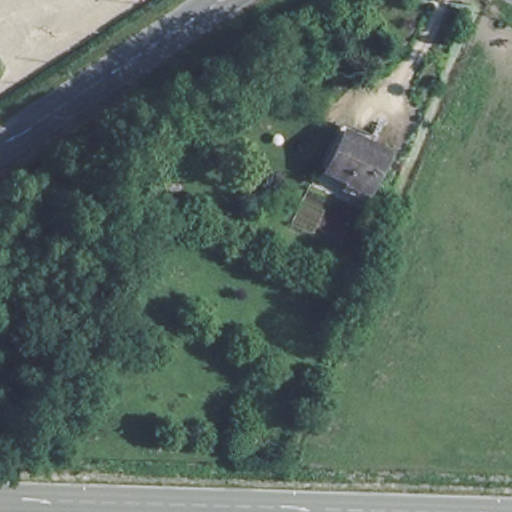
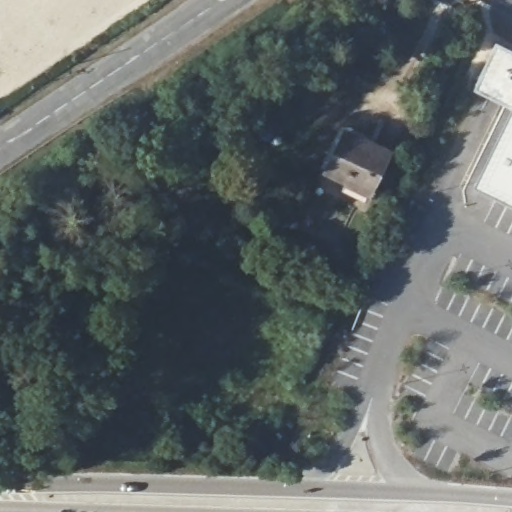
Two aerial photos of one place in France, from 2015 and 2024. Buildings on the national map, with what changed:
new [(512,222),(464,198),(507,116),(471,99),(498,47),(512,54),(512,222)]
unchanged [(370,190),(324,169),(342,126),(388,147),(370,190)]

